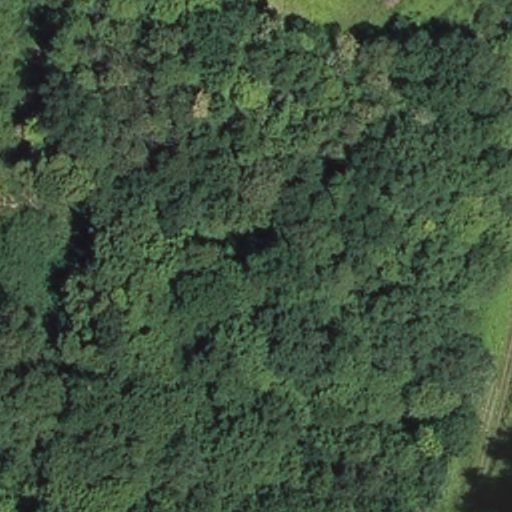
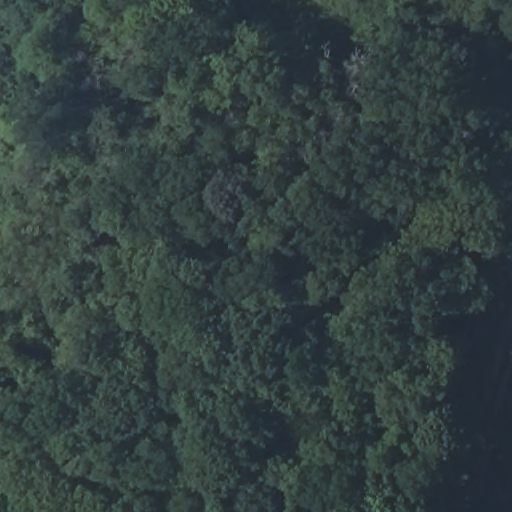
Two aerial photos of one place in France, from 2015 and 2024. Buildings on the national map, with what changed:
[]

